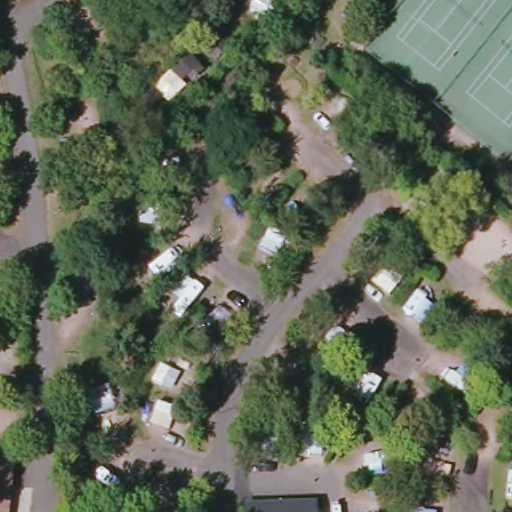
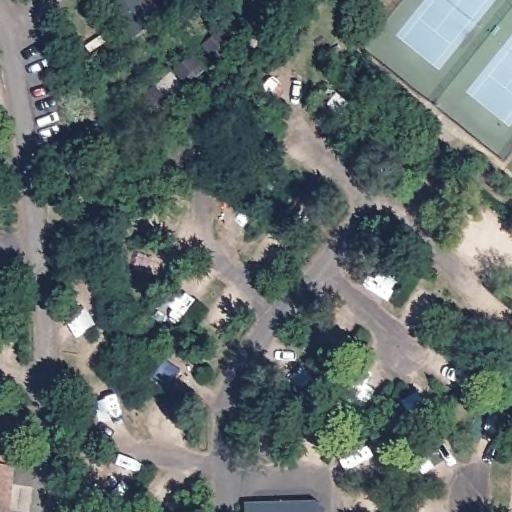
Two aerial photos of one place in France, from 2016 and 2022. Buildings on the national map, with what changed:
unchanged [(213,59),(208,53),(202,44),(218,31),(226,40),(222,44),(227,50),(213,59)]
unchanged [(190,80),(185,74),(179,77),(172,68),(189,54),(196,63),(202,70),(190,80)]
unchanged [(153,116),(148,111),(140,101),(157,85),(166,94),(160,99),(165,105),(153,116)]
unchanged [(0,471),(12,473),(6,512),(0,512),(0,471)]
unchanged [(257,500),(313,499),(313,512),(257,512),(257,500)]

